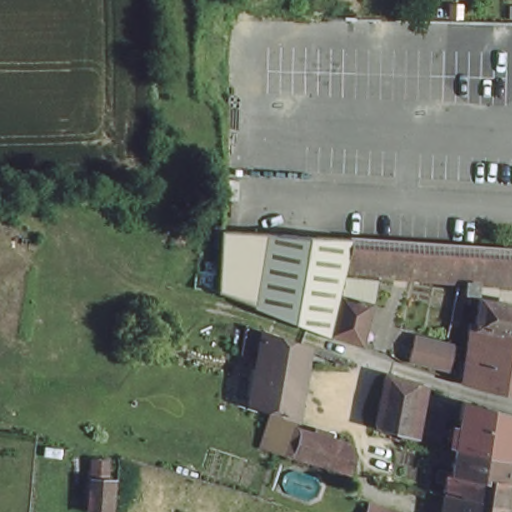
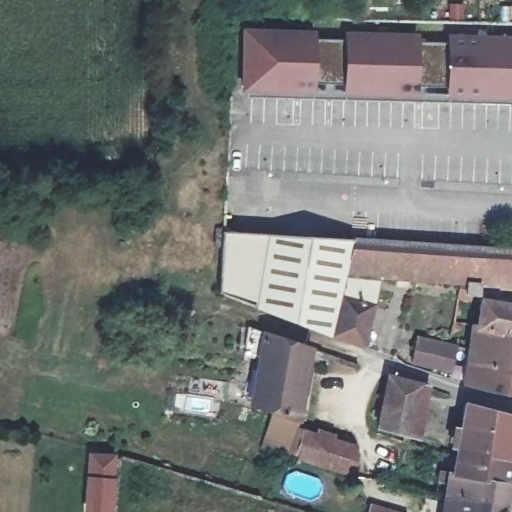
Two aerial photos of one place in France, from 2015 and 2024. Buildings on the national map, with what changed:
demolished [(512,31),(512,73),(452,69),(455,27),(512,31)]
new [(247,96),(247,92),(240,92),(242,29),(315,30),(315,39),(343,39),(343,32),(417,33),(417,42),(446,43),(447,35),(512,36),(512,104),(247,96)]
unchanged [(478,286),(477,297),(465,296),(465,286),(377,280),(360,348),(329,336),(220,295),(223,236),(512,253),(512,288),(478,286)]
unchanged [(470,389),(463,387),(472,328),(477,328),(480,302),(512,308),(512,397),(470,389)]
unchanged [(297,422),(255,407),(262,361),(245,357),(248,329),(308,350),(297,422)]
unchanged [(457,352),(450,376),(412,363),(417,341),(457,352)]
unchanged [(377,429),(382,404),(387,379),(420,387),(415,412),(410,436),(377,429)]
unchanged [(512,418),(512,438),(462,430),(466,406),(512,418)]
unchanged [(277,454),(285,429),(350,447),(355,457),(349,475),(277,454)]
unchanged [(450,446),(451,435),(460,437),(462,430),(512,438),(512,461),(511,466),(457,453),(458,447),(450,446)]
unchanged [(454,477),(457,458),(457,453),(511,466),(507,486),(454,477)]
unchanged [(445,497),(449,477),(454,477),(507,486),(503,508),(445,497)]
unchanged [(109,512),(87,512),(90,481),(110,483),(109,512)]
unchanged [(434,504),(428,502),(431,493),(445,497),(503,508),(503,512),(433,512),(432,512),(434,504)]
unchanged [(403,512),(362,512),(365,501),(403,512)]

